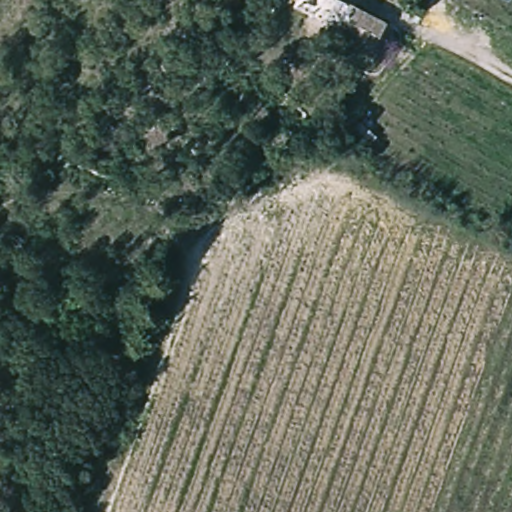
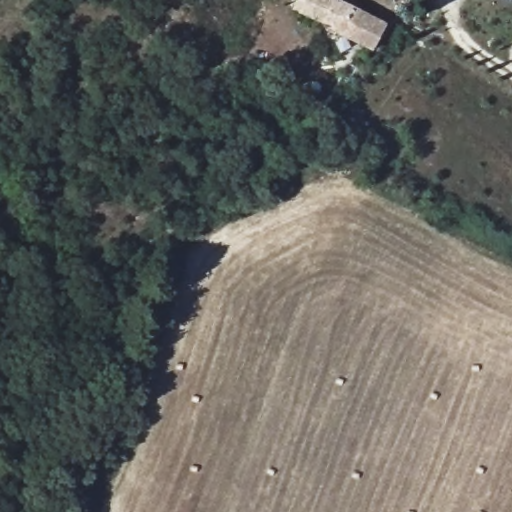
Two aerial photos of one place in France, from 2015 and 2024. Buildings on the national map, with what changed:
unchanged [(349,0),(380,15),(364,45),(323,22),(335,0),(349,0)]

